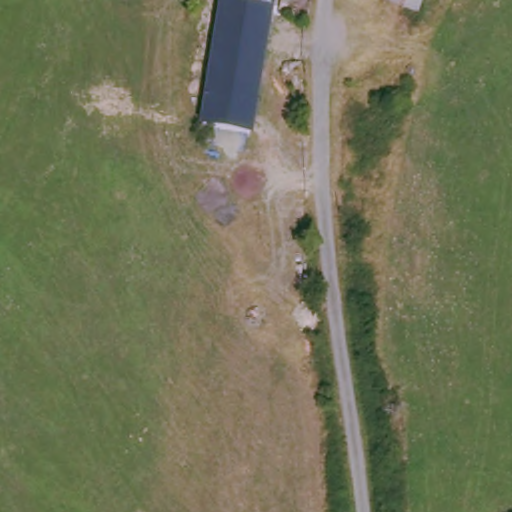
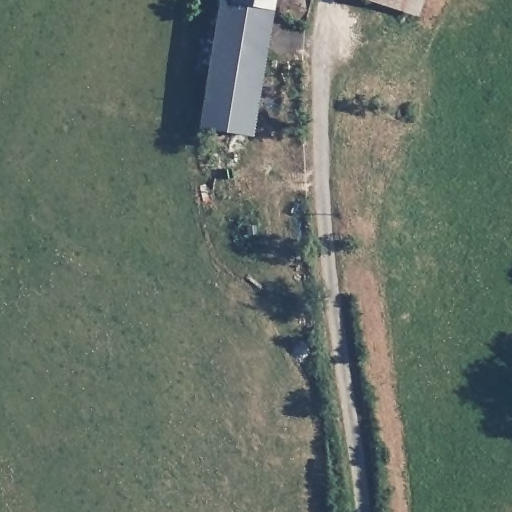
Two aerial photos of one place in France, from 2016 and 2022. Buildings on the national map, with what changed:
unchanged [(221,1),(231,1),(231,0),(312,0),(311,6),(308,17),(272,12),(253,137),(199,129),(221,1)]
unchanged [(397,0),(420,0),(418,7),(397,0)]

